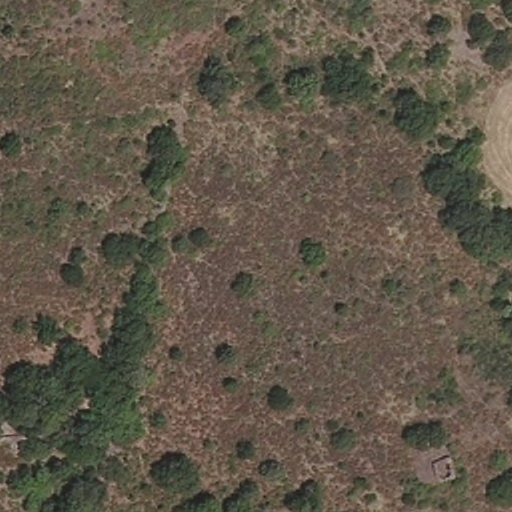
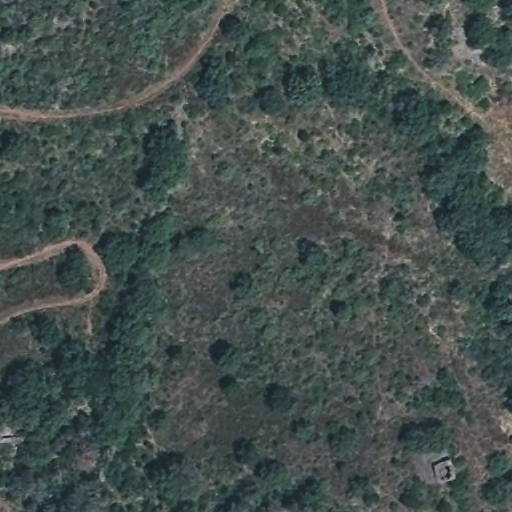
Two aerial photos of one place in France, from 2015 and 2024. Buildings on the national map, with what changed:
unchanged [(441,455),(454,480),(430,492),(423,470),(441,455)]

